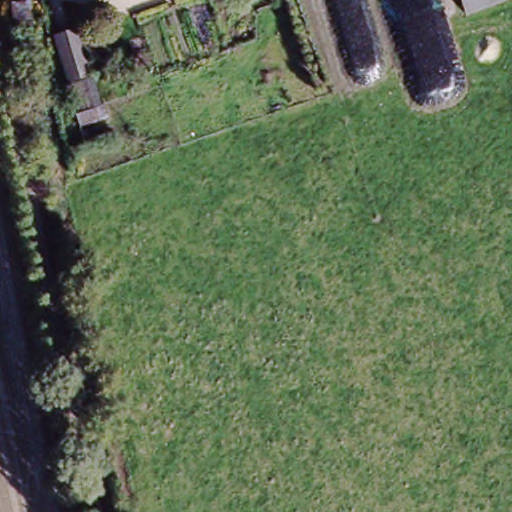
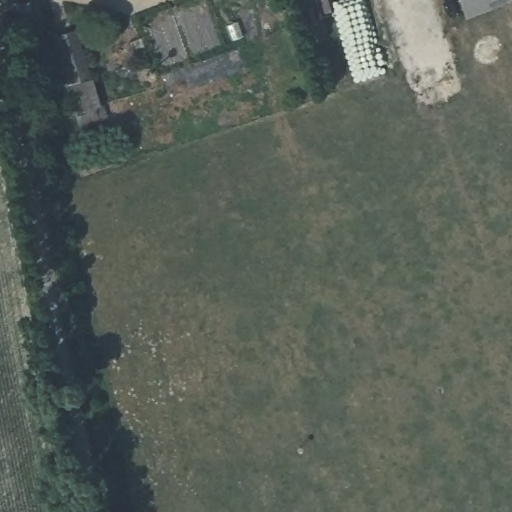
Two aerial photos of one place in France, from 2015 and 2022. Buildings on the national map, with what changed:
unchanged [(454,0),(512,0),(512,6),(461,24),(454,0)]
unchanged [(74,31),(105,121),(77,131),(43,38),(74,31)]

